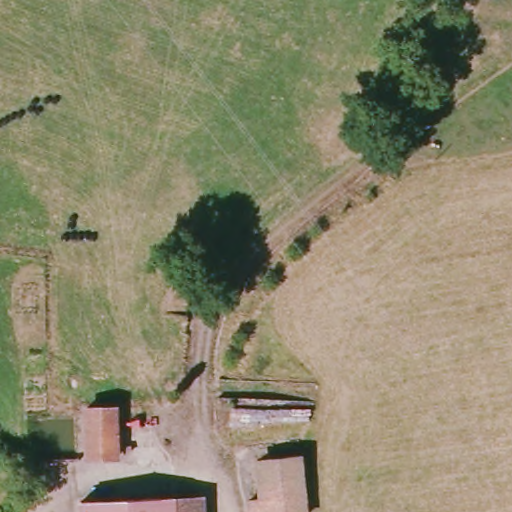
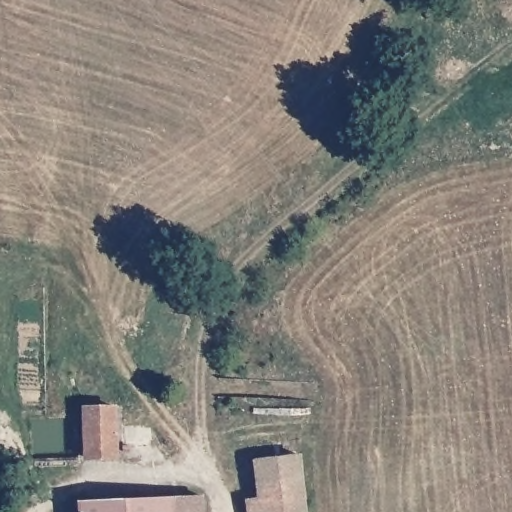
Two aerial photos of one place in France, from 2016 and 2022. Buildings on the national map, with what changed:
unchanged [(78,421),(78,410),(116,408),(116,468),(78,467),(78,421)]
unchanged [(298,457),(298,460),(303,512),(242,512),(242,505),(253,502),(250,462),(298,457)]
unchanged [(180,495),(199,495),(199,512),(172,512),(172,496),(180,495)]
unchanged [(172,496),(172,512),(77,512),(77,500),(172,496)]

